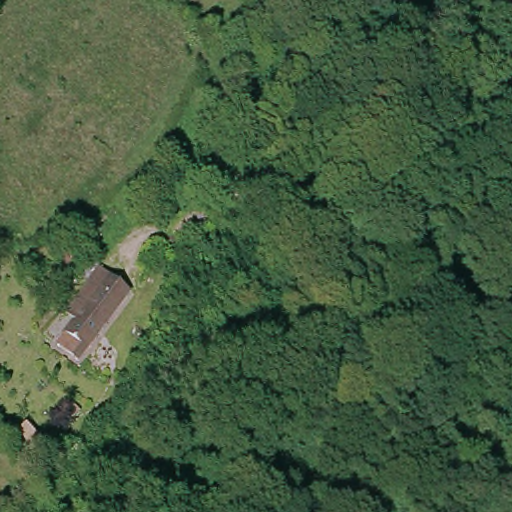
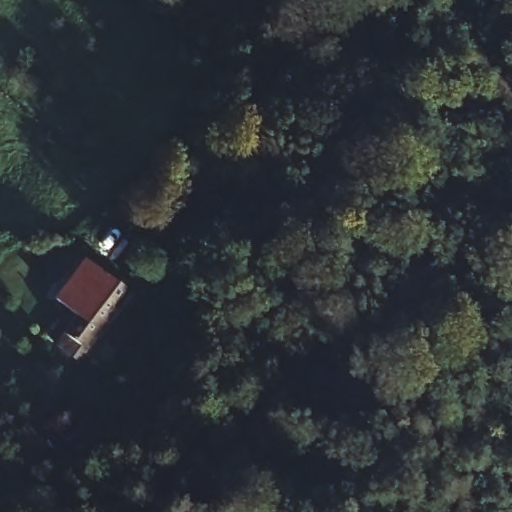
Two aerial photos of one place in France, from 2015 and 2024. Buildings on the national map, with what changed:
unchanged [(57,330),(77,307),(67,299),(85,278),(93,286),(112,262),(135,280),(80,349),(57,330)]

